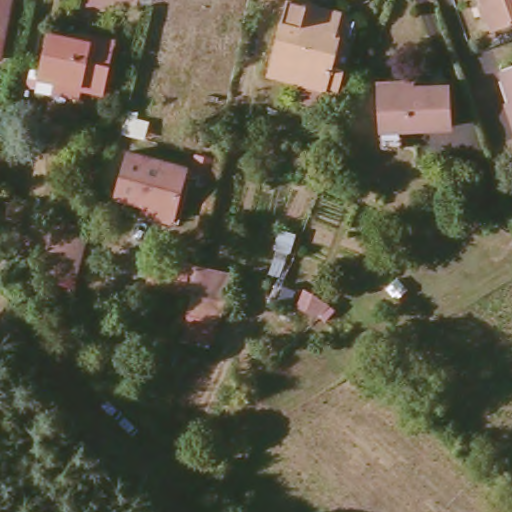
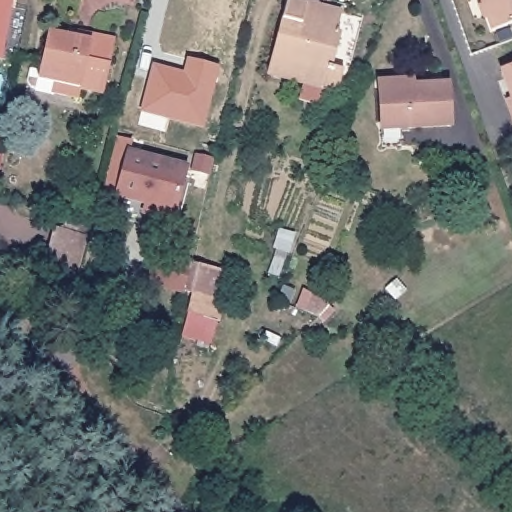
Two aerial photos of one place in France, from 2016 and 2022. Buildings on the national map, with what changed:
unchanged [(4,58),(0,57),(0,0),(17,0),(4,58)]
unchanged [(488,29),(483,17),(487,12),(485,8),(480,7),(477,0),(512,0),(512,22),(488,29)]
unchanged [(287,3),(304,7),(302,16),(315,20),(317,11),(342,18),(338,36),(342,40),(335,69),(347,72),(340,95),(270,76),(287,3)]
unchanged [(102,92),(90,90),(88,101),(53,93),(55,74),(37,71),(43,35),(46,31),(88,40),(90,33),(112,38),(102,92)]
new [(218,65),(202,126),(165,115),(167,110),(143,104),(154,65),(175,70),(173,77),(183,80),(189,58),(218,65)]
unchanged [(508,68),(512,67),(512,78),(508,68)]
unchanged [(443,88),(446,132),(412,133),(393,134),(393,125),(377,126),(375,92),(443,88)]
unchanged [(118,140),(125,116),(153,123),(147,144),(118,140)]
unchanged [(140,213),(142,205),(115,198),(125,153),(183,166),(174,207),(171,220),(140,213)]
unchanged [(509,177),(504,167),(512,163),(512,175),(509,177)]
unchanged [(83,232),(70,282),(40,274),(50,232),(60,234),(62,226),(83,232)]
unchanged [(217,328),(183,321),(192,280),(194,270),(228,279),(217,328)]
unchanged [(321,316),(307,310),(315,294),(337,303),(322,316),(321,316)]

